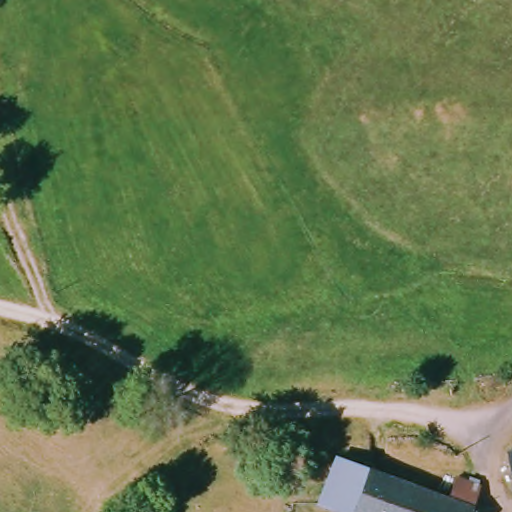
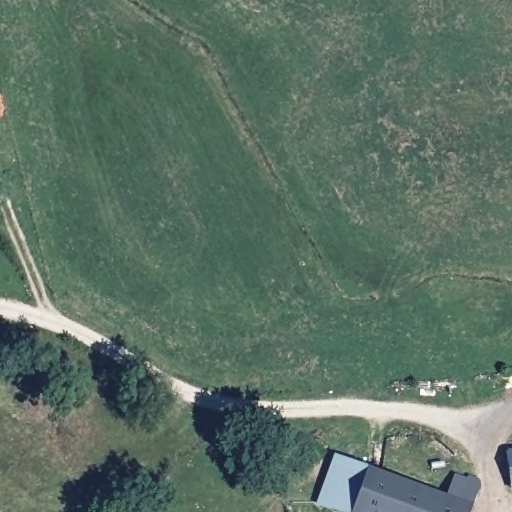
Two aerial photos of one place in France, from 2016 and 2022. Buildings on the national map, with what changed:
unchanged [(512,454),(512,490),(510,490),(505,455),(512,454)]
unchanged [(470,512),(331,512),(317,507),(334,460),(445,500),(455,479),(479,490),(470,512)]

